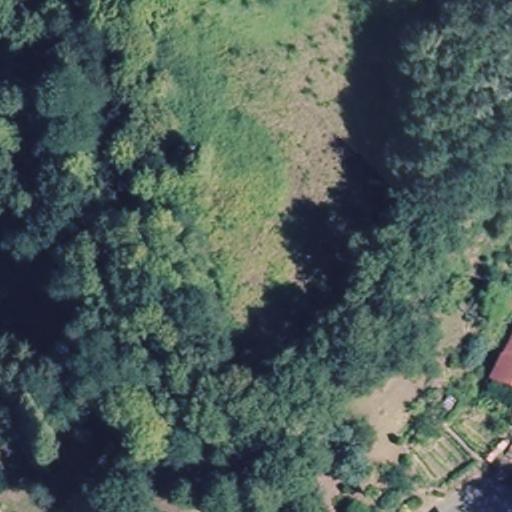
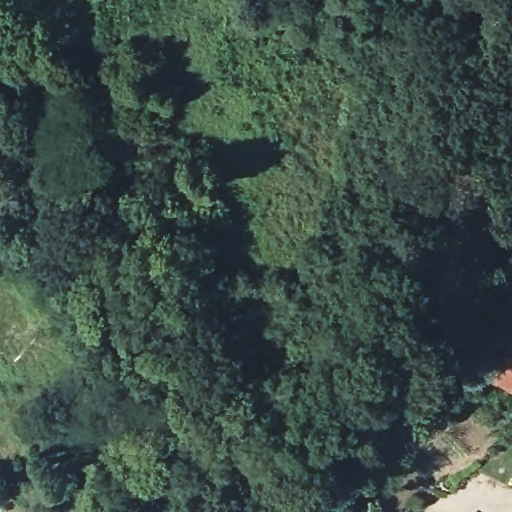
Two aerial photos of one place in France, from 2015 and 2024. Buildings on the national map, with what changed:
unchanged [(511,407),(488,395),(496,377),(504,360),(498,356),(506,339),(512,342),(512,404),(511,407)]

